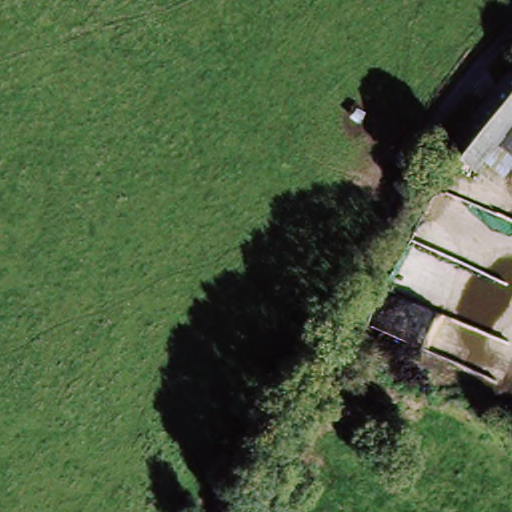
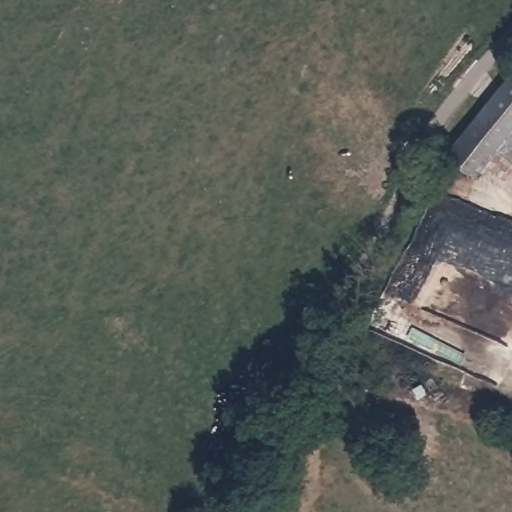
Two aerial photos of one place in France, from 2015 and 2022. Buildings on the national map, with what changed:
unchanged [(512,74),(512,138),(496,159),(467,136),(466,135),(484,112),(497,93),(512,74)]
unchanged [(489,166),(481,178),(453,157),(450,155),(465,135),(466,135),(467,136),(496,159),(512,138),(512,176),(508,181),(489,166)]

